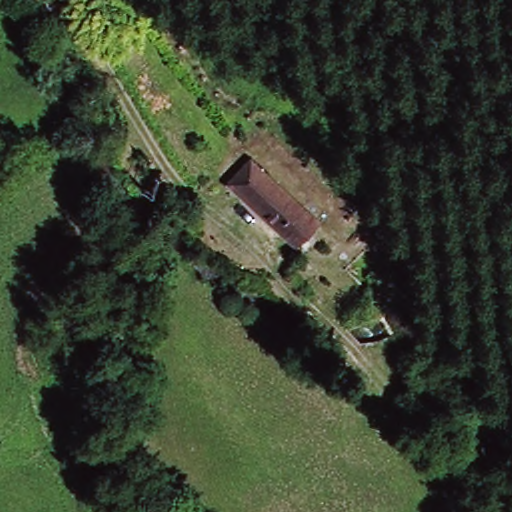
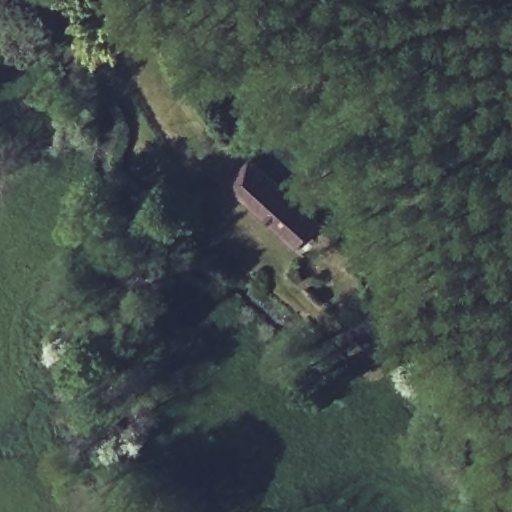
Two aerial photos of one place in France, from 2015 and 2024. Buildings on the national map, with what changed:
unchanged [(262,164),(259,166),(321,229),(295,255),(227,189),(240,176),(235,170),(253,154),(262,164)]

